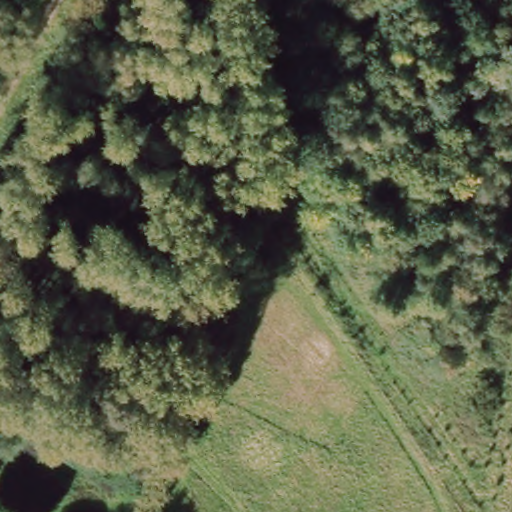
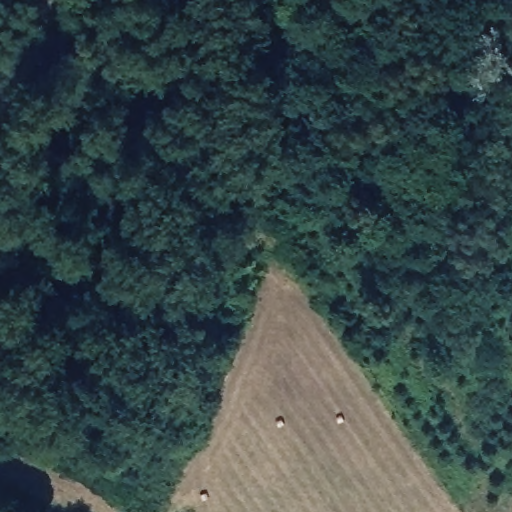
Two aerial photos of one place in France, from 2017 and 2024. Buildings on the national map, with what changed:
unchanged [(123,74),(117,89),(95,81),(101,65),(123,74)]
unchanged [(190,248),(183,269),(143,254),(151,233),(190,248)]

